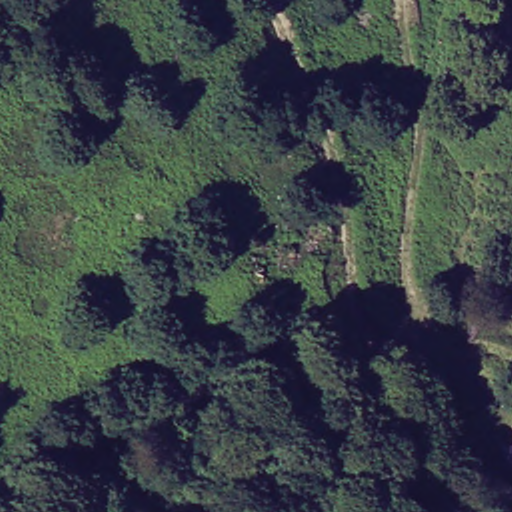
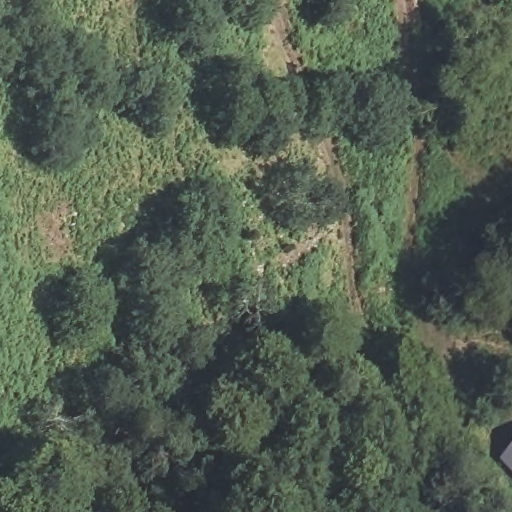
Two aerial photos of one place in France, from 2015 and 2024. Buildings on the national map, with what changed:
unchanged [(512,458),(512,465),(509,462),(512,458)]

